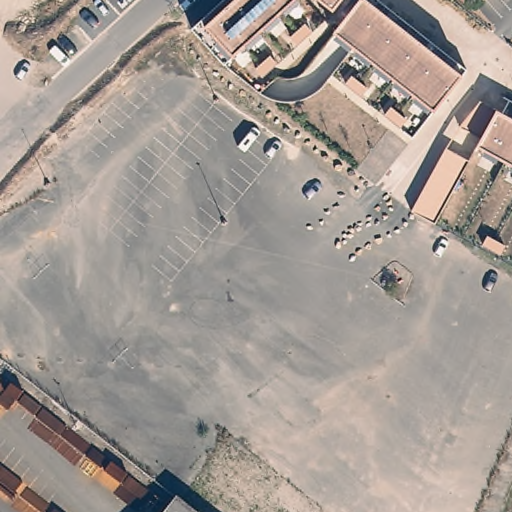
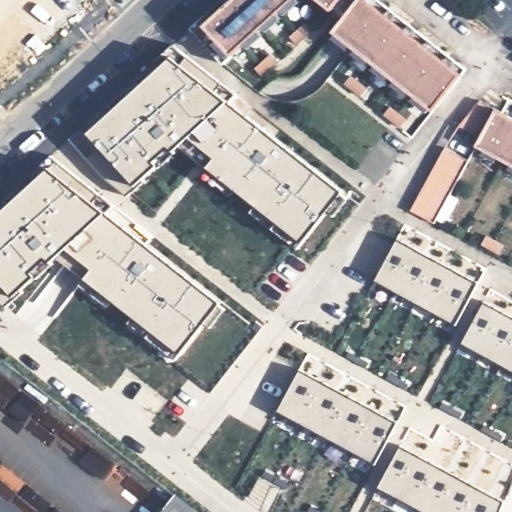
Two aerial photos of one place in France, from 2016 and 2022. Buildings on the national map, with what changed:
unchanged [(205,26),(233,0),(292,0),(232,56),(205,26)]
unchanged [(332,35),(343,21),(331,11),(320,0),(371,0),(461,75),(430,114),(332,35)]
new [(250,213),(254,207),(234,191),(229,197),(200,174),(205,168),(179,147),(125,196),(105,181),(69,140),(172,46),(235,96),(228,102),(342,192),(340,195),(346,200),(332,218),(326,213),(301,245),(296,251),(250,213)]
unchanged [(512,116),(512,165),(476,146),(497,108),(512,116)]
unchanged [(468,159),(433,222),(411,209),(445,147),(468,159)]
new [(127,323),(132,318),(111,302),(106,307),(79,285),(83,279),(56,257),(3,306),(0,304),(0,202),(50,156),(113,207),(106,212),(220,303),(218,306),(224,311),(210,328),(204,324),(179,356),(174,361),(127,323)]
new [(396,240),(478,285),(455,327),(373,282),(396,240)]
new [(298,370),(397,424),(373,467),(275,413),(298,370)]
new [(399,447),(481,492),(470,512),(417,512),(376,490),(399,447)]
unchanged [(182,504),(192,512),(166,512),(176,499),(182,504)]
demolished [(312,512),(297,512),(303,505),(312,512)]

